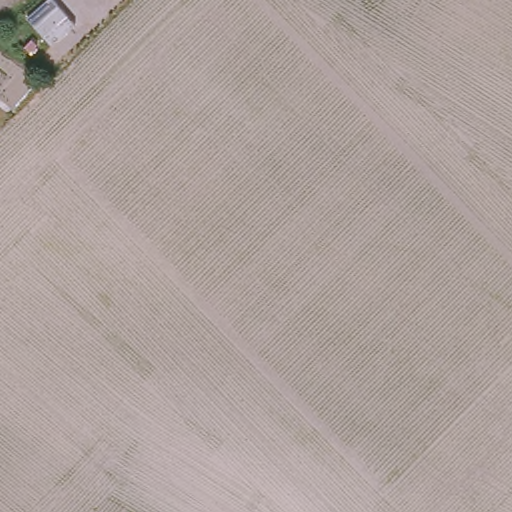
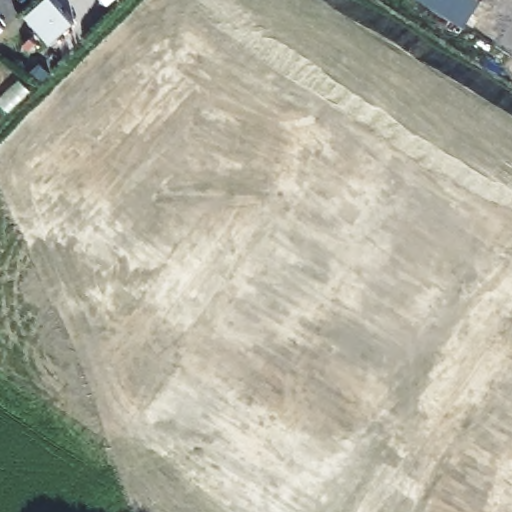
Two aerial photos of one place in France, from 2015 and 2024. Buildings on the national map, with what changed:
unchanged [(77,25),(52,46),(26,17),(45,0),(55,0),(77,25)]
new [(421,0),(480,0),(481,1),(465,26),(421,0)]

